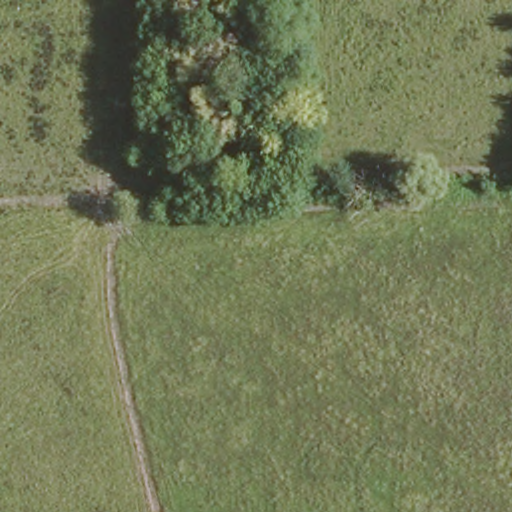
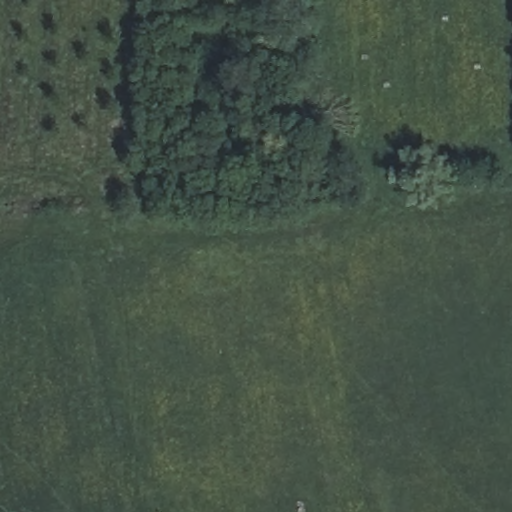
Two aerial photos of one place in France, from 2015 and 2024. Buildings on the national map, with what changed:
[]

